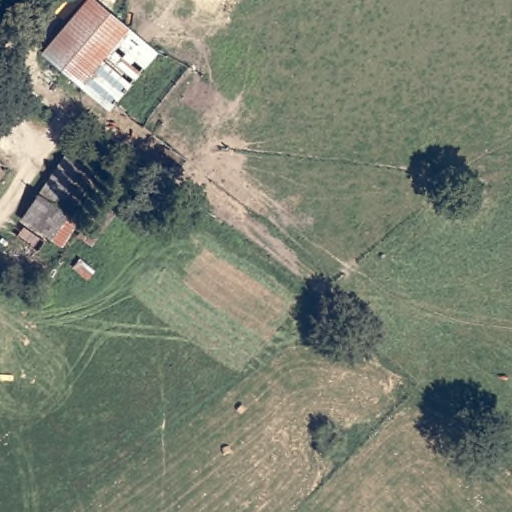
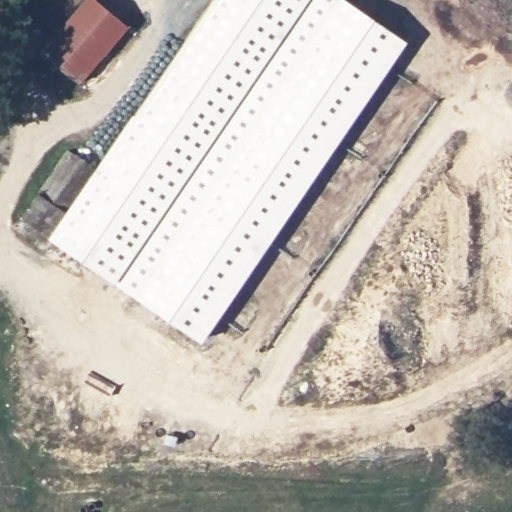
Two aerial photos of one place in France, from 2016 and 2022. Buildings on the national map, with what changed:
new [(15,226),(25,209),(21,203),(33,185),(40,189),(62,158),(71,146),(100,165),(213,0),(308,0),(115,282),(48,238),(60,222),(42,245),(36,243),(15,226)]
unchanged [(39,53),(80,0),(87,0),(121,29),(80,81),(39,53)]
new [(345,0),(407,42),(201,341),(135,296),(337,0),(345,0)]
demolished [(90,178),(60,222),(42,245),(36,243),(15,226),(25,209),(21,203),(33,185),(40,189),(62,158),(90,178)]

